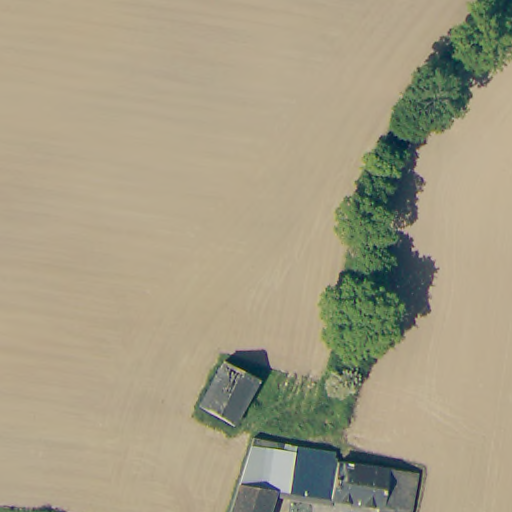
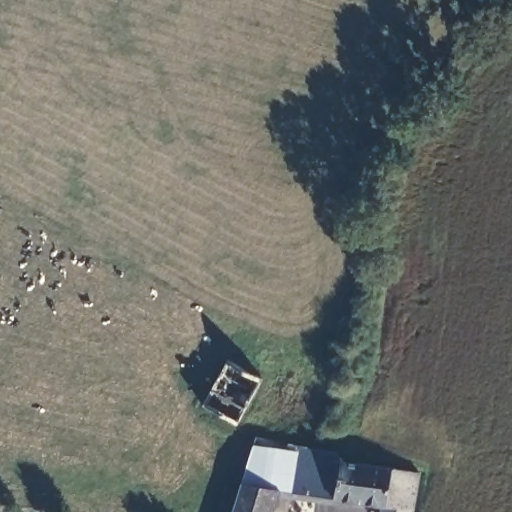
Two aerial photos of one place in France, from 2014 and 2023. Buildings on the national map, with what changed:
unchanged [(234,422),(200,405),(225,360),(258,377),(234,422)]
unchanged [(387,504),(316,496),(277,492),(269,512),(225,512),(250,440),(277,443),(307,446),(328,448),(342,459),(343,459),(409,468),(414,468),(422,471),(419,507),(415,507),(415,512),(386,512),(387,504)]

